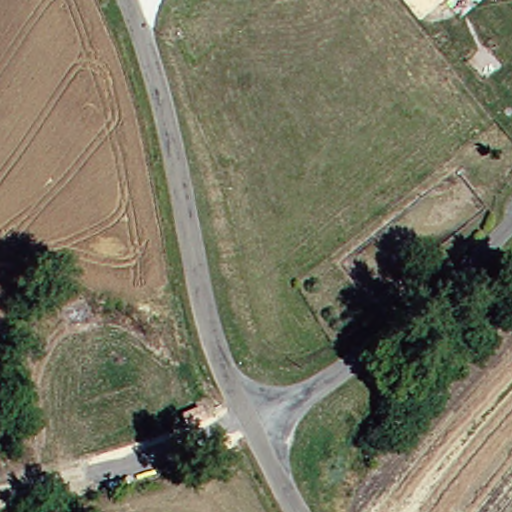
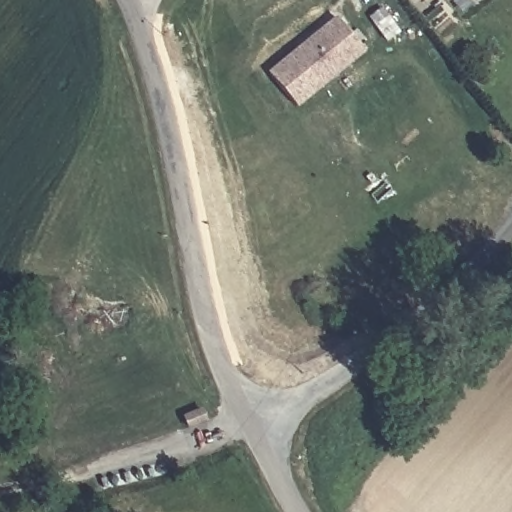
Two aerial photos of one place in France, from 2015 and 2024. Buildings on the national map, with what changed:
unchanged [(444,4),(440,0),(449,0),(444,4)]
new [(335,17),(365,53),(297,109),(267,73),(335,17)]
demolished [(85,320),(75,339),(55,332),(62,309),(85,320)]
demolished [(182,387),(187,411),(165,419),(156,396),(182,387)]
new [(192,402),(198,425),(175,434),(167,411),(192,402)]

